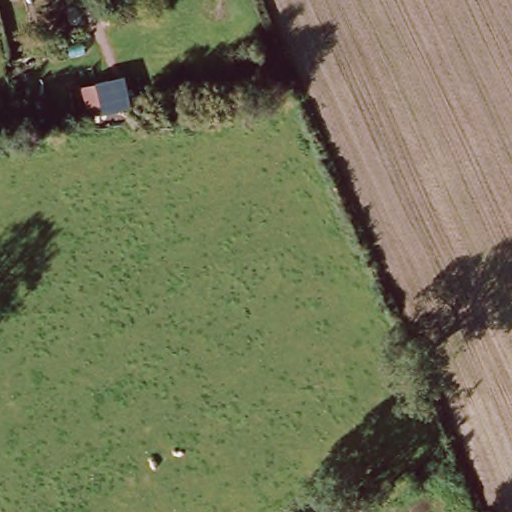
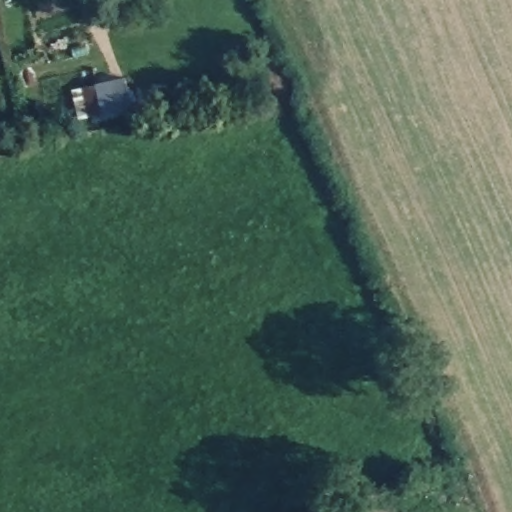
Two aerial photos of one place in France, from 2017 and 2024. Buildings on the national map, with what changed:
unchanged [(97,112),(92,84),(121,78),(127,106),(97,112)]

